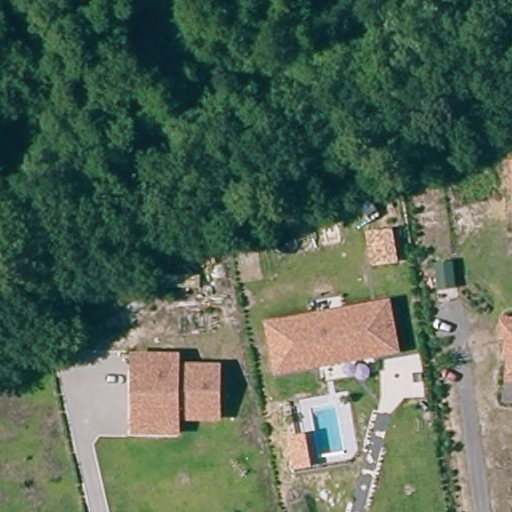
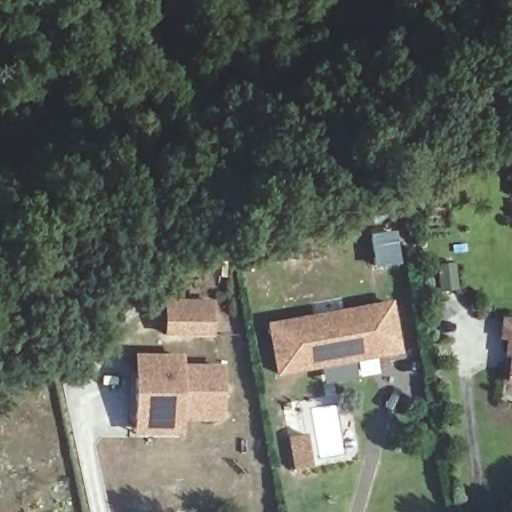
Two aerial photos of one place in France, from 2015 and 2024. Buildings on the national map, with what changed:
unchanged [(375,268),(370,235),(396,232),(400,265),(375,268)]
unchanged [(458,287),(442,289),(439,262),(455,260),(458,287)]
new [(216,298),(214,338),(164,336),(164,298),(216,298)]
unchanged [(280,366),(273,321),(395,305),(401,350),(355,356),(323,361),(280,366)]
unchanged [(511,335),(505,335),(506,317),(512,318),(512,352),(510,351),(511,335)]
unchanged [(139,433),(139,417),(139,378),(139,376),(139,355),(155,355),(183,355),(184,365),(223,365),(224,417),(182,417),(182,433),(139,433)]
unchanged [(512,373),(512,378),(511,377),(512,373)]
new [(302,428),(306,460),(290,463),(285,430),(302,428)]

